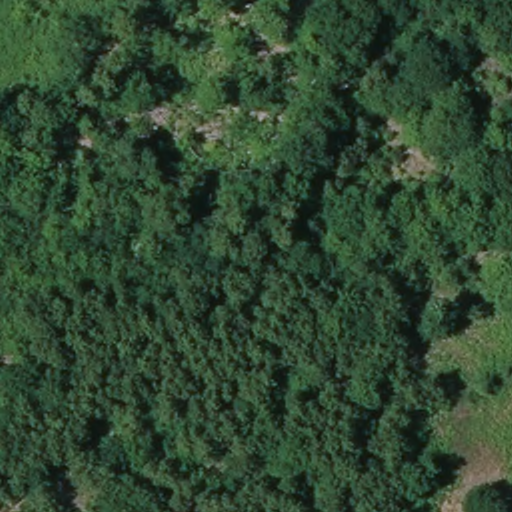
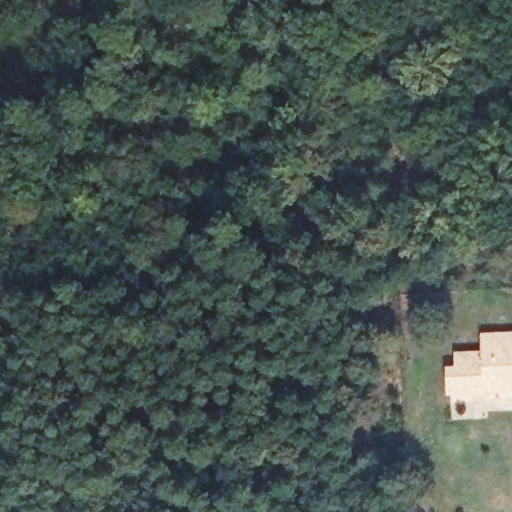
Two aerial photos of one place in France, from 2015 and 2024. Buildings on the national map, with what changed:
new [(454,394),(454,374),(463,373),(462,358),(489,357),(489,339),(512,338),(512,392),(491,393),(472,394),(454,394)]

